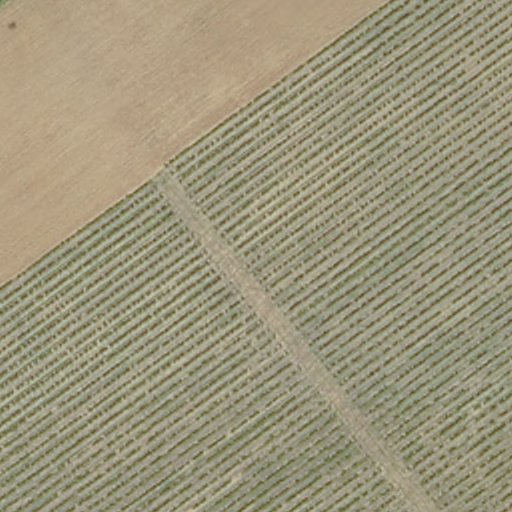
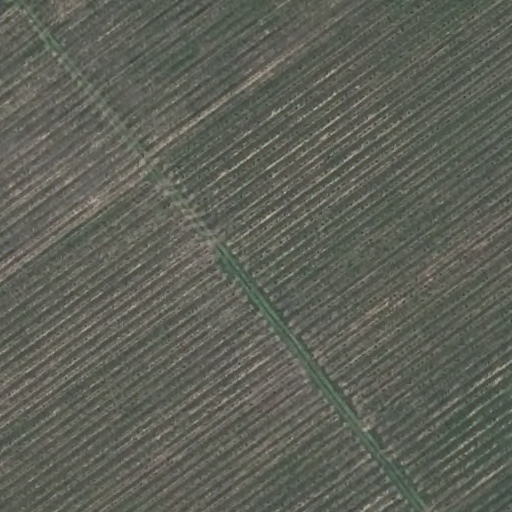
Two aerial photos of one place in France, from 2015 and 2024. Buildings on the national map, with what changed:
[]

